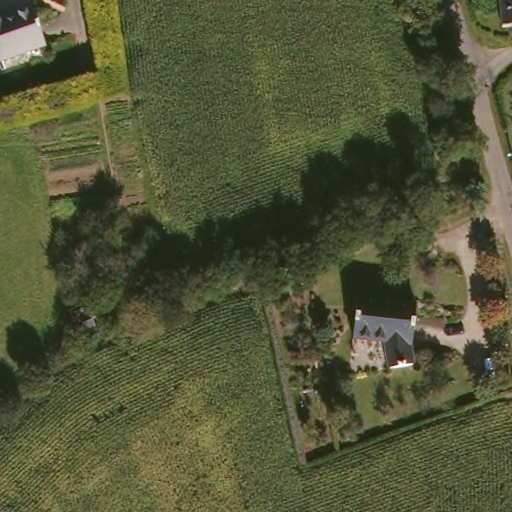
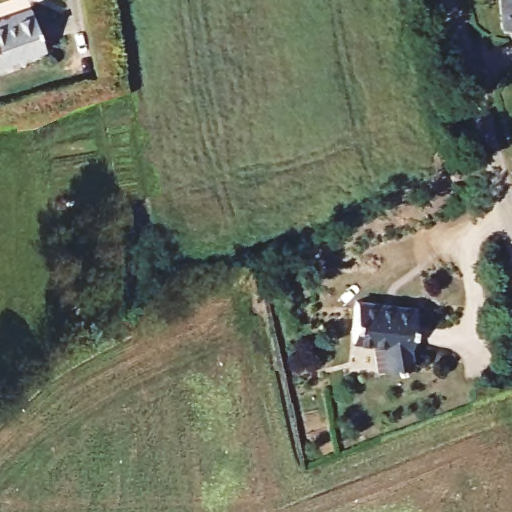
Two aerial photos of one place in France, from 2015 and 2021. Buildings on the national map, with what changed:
unchanged [(512,0),(512,37),(511,37),(508,34),(506,28),(500,28),(500,26),(497,0),(512,0)]
unchanged [(29,11),(43,50),(0,67),(0,22),(29,11)]
unchanged [(413,309),(409,348),(411,367),(389,374),(381,348),(352,344),(356,302),(413,309)]
unchanged [(123,309),(129,323),(98,336),(92,322),(123,309)]

